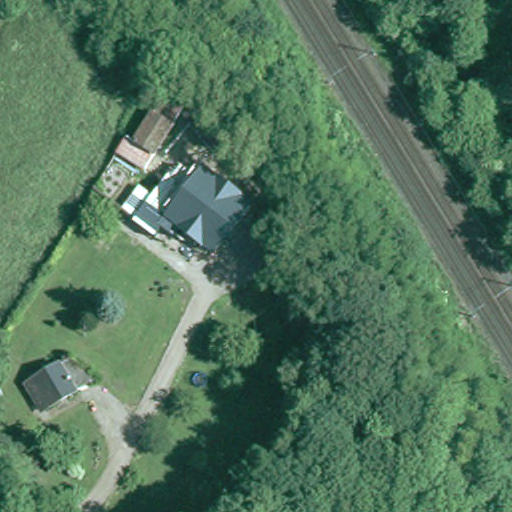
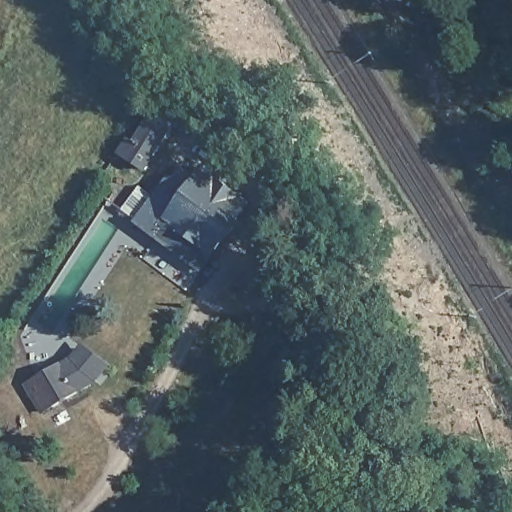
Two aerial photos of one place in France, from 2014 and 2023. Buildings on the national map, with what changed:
unchanged [(128,137),(137,142),(164,99),(182,110),(147,169),(119,152),(128,137)]
unchanged [(190,115),(182,110),(187,103),(193,107),(190,115)]
unchanged [(190,115),(207,103),(230,135),(212,146),(190,115)]
unchanged [(175,230),(165,223),(158,231),(124,204),(140,181),(157,193),(170,173),(173,175),(183,163),(196,172),(204,161),(251,198),(237,215),(240,217),(227,234),(225,232),(213,247),(192,232),(186,238),(175,230)]
unchanged [(28,383),(70,360),(96,380),(45,410),(28,383)]

